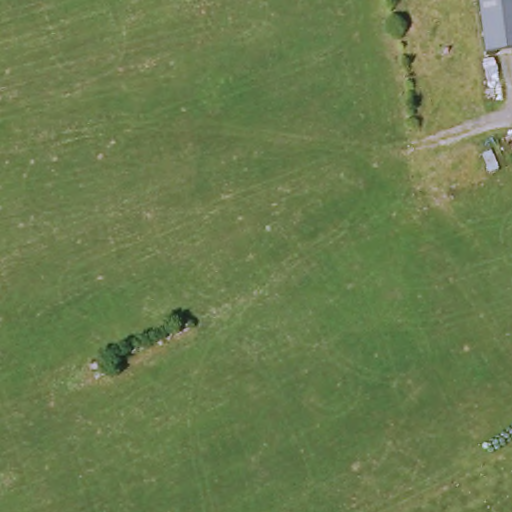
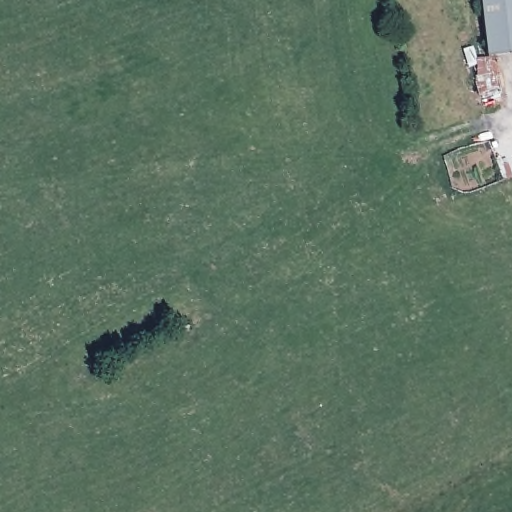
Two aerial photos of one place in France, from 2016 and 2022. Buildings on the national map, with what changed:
unchanged [(485,56),(476,0),(512,0),(512,52),(485,56)]

